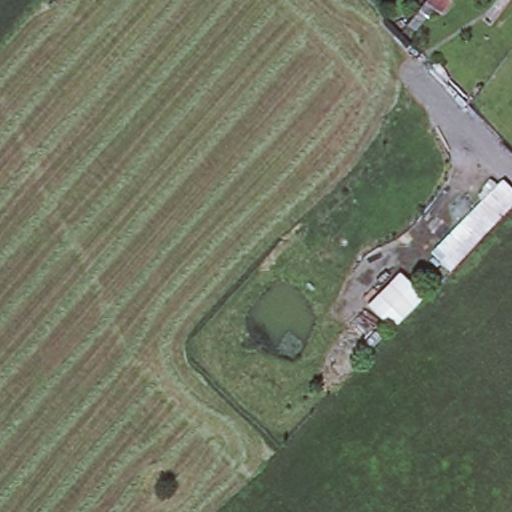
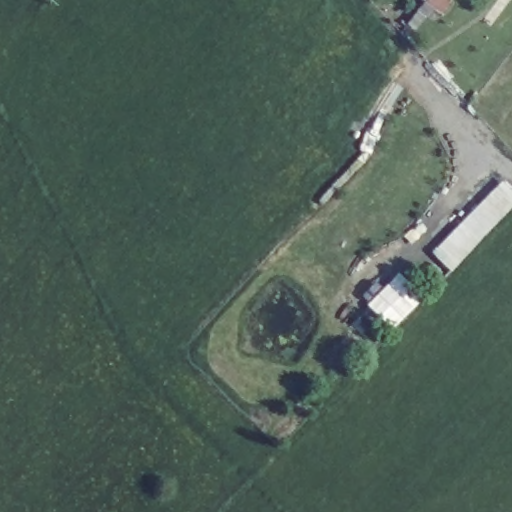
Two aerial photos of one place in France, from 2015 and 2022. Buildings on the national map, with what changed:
unchanged [(427,0),(453,0),(454,1),(445,17),(436,12),(417,33),(407,26),(427,0)]
unchanged [(512,185),(512,207),(451,272),(432,254),(505,178),(512,185)]
unchanged [(398,263),(415,276),(390,307),(371,295),(398,263)]

